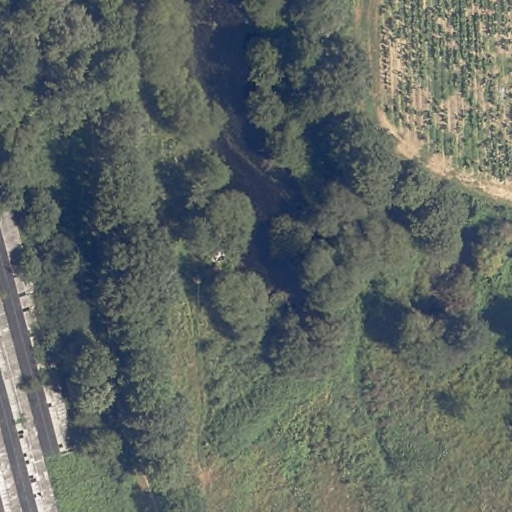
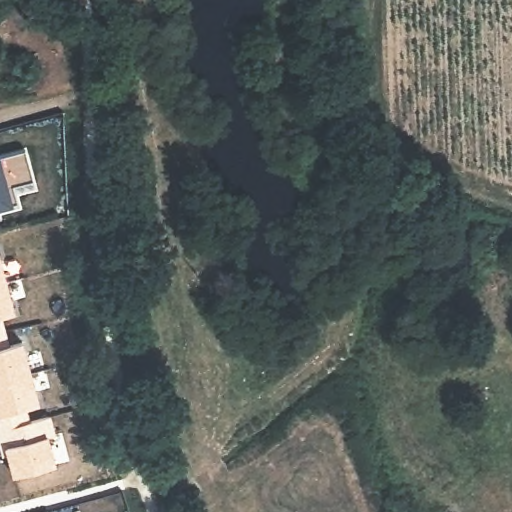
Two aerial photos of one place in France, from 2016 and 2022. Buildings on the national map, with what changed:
new [(30,179),(4,186),(9,204),(0,206),(0,154),(21,148),(30,179)]
new [(1,316),(10,345),(22,341),(40,404),(27,408),(30,420),(50,415),(56,436),(49,438),(57,464),(13,475),(6,449),(2,450),(0,443),(0,250),(16,312),(1,316)]

